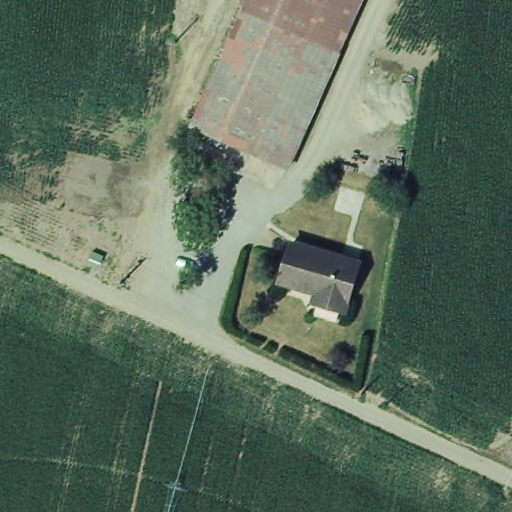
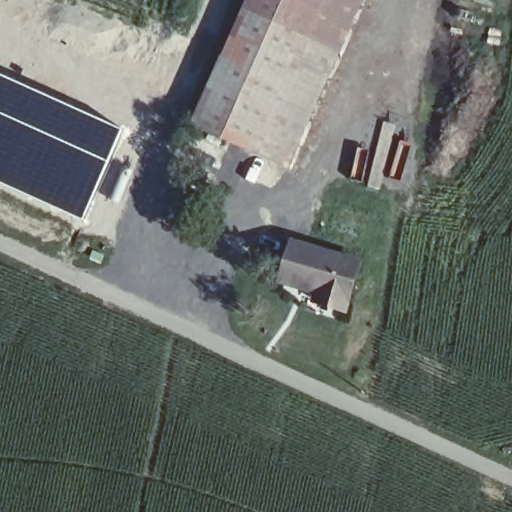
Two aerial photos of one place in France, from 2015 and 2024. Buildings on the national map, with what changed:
unchanged [(352,0),(277,168),(182,126),(237,0),(352,0)]
new [(127,130),(82,222),(0,185),(0,73),(127,130)]
unchanged [(319,307),(320,302),(322,297),(285,287),(297,248),(363,268),(351,311),(350,316),(319,307)]

